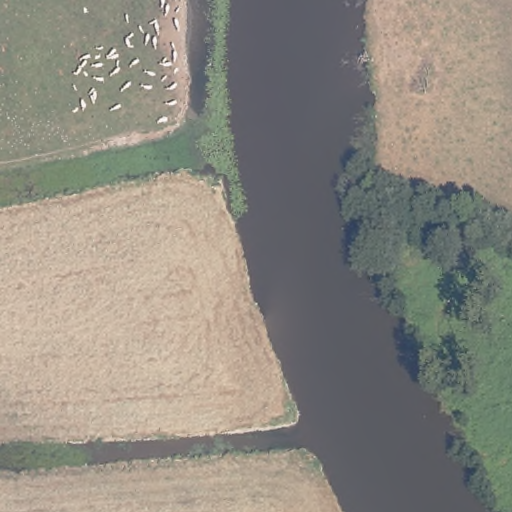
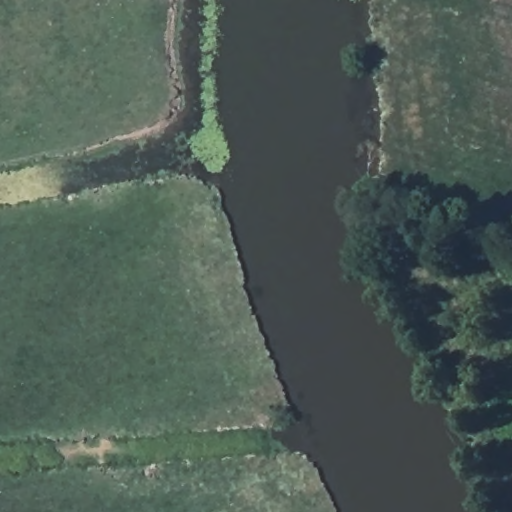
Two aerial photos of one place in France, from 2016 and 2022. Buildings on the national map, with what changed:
[]

